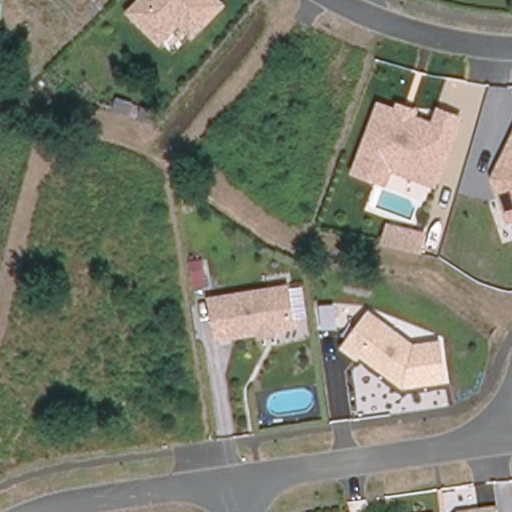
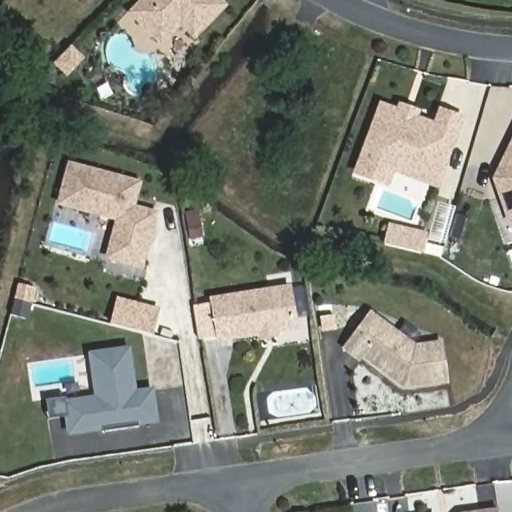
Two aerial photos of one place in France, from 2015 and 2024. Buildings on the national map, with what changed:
unchanged [(229,5),(195,40),(179,26),(161,45),(127,12),(139,0),(223,0),(229,5)]
unchanged [(394,171),(389,186),(352,173),(378,100),(396,107),(399,99),(422,107),(419,115),(435,121),(439,106),(464,115),(438,187),(394,171)]
unchanged [(508,224),(492,176),(512,137),(512,222),(508,224)]
new [(75,168),(144,186),(138,207),(161,213),(147,266),(114,257),(124,221),(65,205),(75,168)]
unchanged [(424,256),(384,246),(389,222),(429,232),(424,256)]
unchanged [(297,329),(275,332),(272,330),(266,331),(264,334),(220,341),(214,301),(290,289),(297,329)]
new [(119,300),(163,311),(158,336),(115,325),(119,300)]
unchanged [(444,339),(451,382),(404,390),(363,357),(358,362),(342,348),(374,309),(417,342),(444,339)]
new [(159,423),(68,435),(64,417),(50,419),(48,400),(64,397),(65,400),(94,397),(94,396),(88,352),(130,347),(137,390),(154,387),(159,423)]
unchanged [(469,512),(501,508),(501,512),(469,512)]

